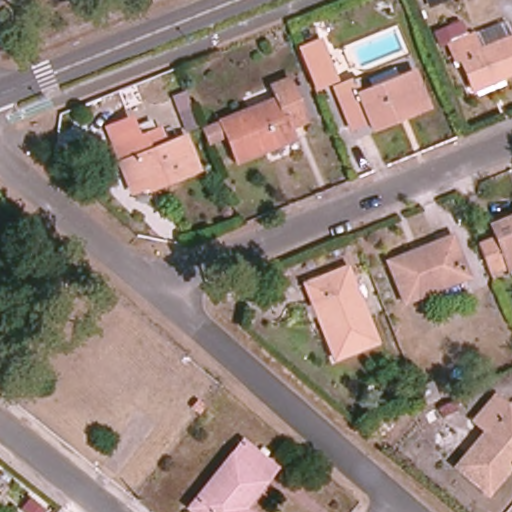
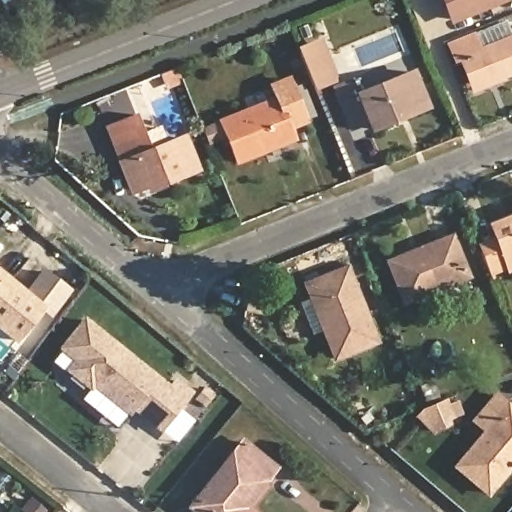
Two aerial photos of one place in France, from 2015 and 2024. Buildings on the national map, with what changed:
new [(443,0),(501,0),(452,20),(443,0)]
unchanged [(498,67),(471,78),(461,54),(456,55),(450,40),(473,31),(476,38),(479,37),(482,45),(512,33),(512,68),(501,73),(498,67)]
unchanged [(312,87),(299,52),(321,43),(335,78),(312,87)]
unchanged [(402,116),(371,128),(368,121),(351,129),(338,97),(356,90),(358,96),(414,73),(424,97),(427,106),(402,116)]
unchanged [(220,122),(276,99),(271,86),(288,79),(293,90),(305,119),(306,122),(290,129),(294,140),(237,163),(227,137),(207,145),(202,133),(201,129),(220,122)]
unchanged [(197,173),(151,191),(149,188),(132,195),(121,167),(116,153),(109,135),(132,125),(138,123),(145,141),(159,136),(165,151),(185,143),(197,173)]
unchanged [(484,275),(480,264),(473,247),(492,240),(486,226),(512,216),(512,267),(504,270),(502,267),(484,275)]
unchanged [(468,278),(404,303),(387,262),(452,237),(468,278)]
unchanged [(331,325),(320,298),(315,301),(308,286),(346,271),(373,341),(336,356),(325,328),(331,325)]
new [(26,295),(44,272),(63,288),(45,311),(16,340),(0,328),(0,293),(9,282),(26,295)]
demolished [(44,272),(63,288),(45,311),(26,295),(44,272)]
new [(0,294),(0,273),(10,281),(0,294)]
new [(176,377),(195,392),(162,433),(132,412),(130,416),(94,388),(91,391),(65,370),(72,361),(59,349),(84,316),(170,384),(176,377)]
demolished [(122,330),(131,336),(124,344),(163,375),(169,368),(185,381),(152,422),(89,373),(122,330)]
unchanged [(418,387),(433,381),(440,399),(425,405),(418,387)]
unchanged [(507,406),(504,411),(512,418),(512,466),(488,494),(457,467),(487,431),(475,421),(496,396),(507,406)]
unchanged [(276,468),(242,509),(246,512),(194,512),(190,508),(243,442),(276,468)]

